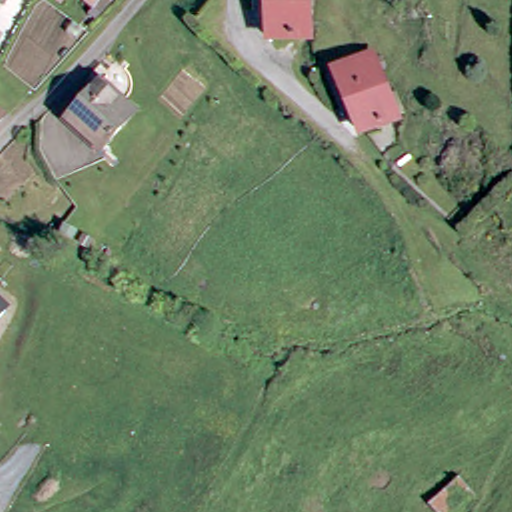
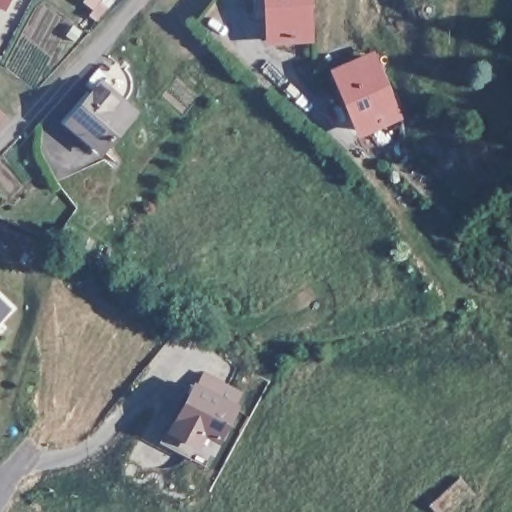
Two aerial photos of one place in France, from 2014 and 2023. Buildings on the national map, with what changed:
unchanged [(0,5),(0,0),(9,0),(5,8),(0,5)]
unchanged [(96,23),(88,17),(92,12),(82,5),(85,0),(110,0),(112,1),(96,23)]
unchanged [(316,36),(280,38),(277,0),(313,0),(316,36)]
unchanged [(372,56),(397,116),(361,131),(335,72),(372,56)]
unchanged [(135,119),(100,155),(67,124),(102,88),(135,119)]
unchanged [(0,129),(0,114),(7,121),(0,129)]
unchanged [(0,314),(0,302),(6,307),(0,314)]
new [(240,404),(219,444),(212,440),(201,461),(161,440),(170,426),(195,380),(240,404)]
unchanged [(441,512),(433,502),(465,476),(485,497),(468,512),(441,512)]

